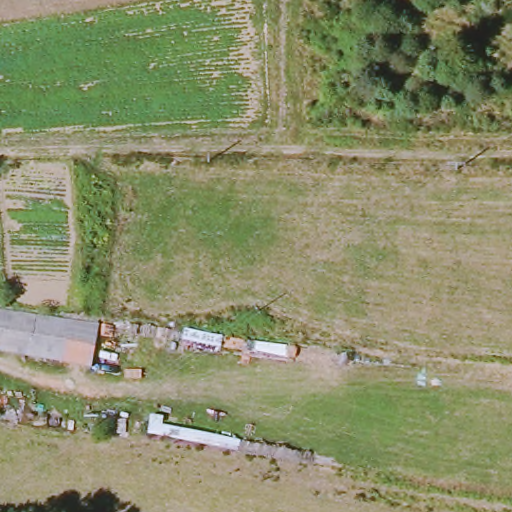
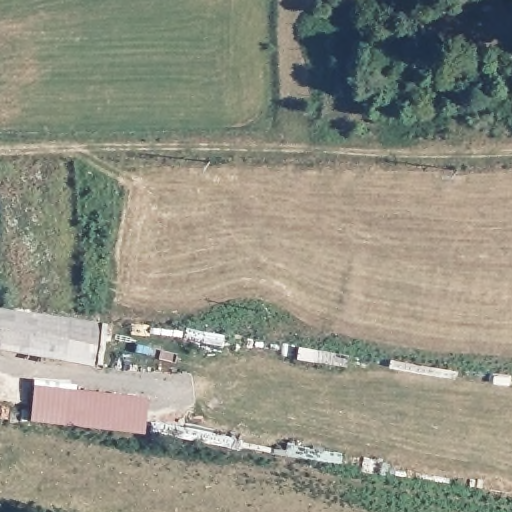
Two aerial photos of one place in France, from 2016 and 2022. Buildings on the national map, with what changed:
unchanged [(24,356),(26,347),(0,343),(0,310),(66,317),(65,322),(91,324),(90,335),(66,334),(62,360),(24,356)]
new [(33,385),(146,398),(143,435),(29,422),(33,385)]

